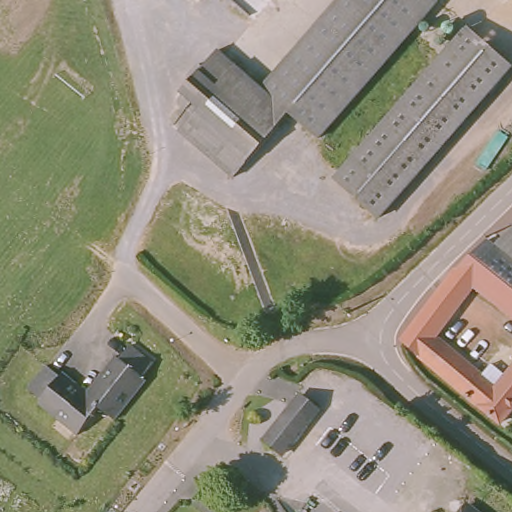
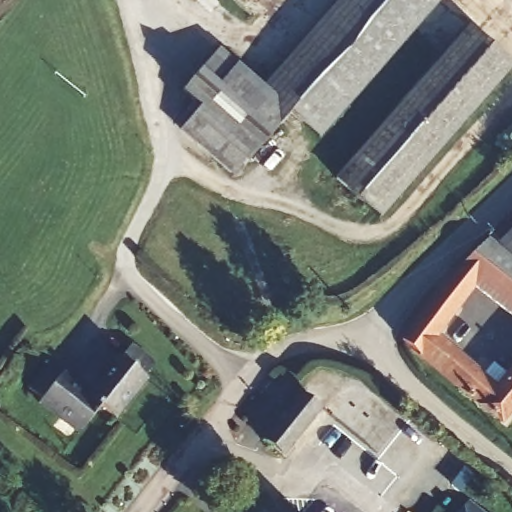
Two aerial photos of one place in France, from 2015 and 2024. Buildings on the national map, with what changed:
unchanged [(314,145),(285,121),(232,180),(176,131),(196,109),(182,96),(218,57),(262,94),(349,0),(427,0),(439,11),(314,145)]
unchanged [(376,223),(335,185),(473,38),(512,74),(512,80),(376,223)]
unchanged [(506,243),(512,237),(512,250),(511,249),(506,243)]
unchanged [(498,429),(403,348),(442,297),(456,278),(490,243),(495,247),(498,250),(512,262),(512,325),(475,292),(426,349),(463,382),(468,376),(477,383),(487,372),(502,385),(512,374),(512,412),(511,414),(498,429)]
unchanged [(512,250),(512,262),(498,250),(506,243),(511,249),(512,250)]
unchanged [(121,362),(130,351),(153,370),(143,382),(145,383),(113,421),(100,411),(80,435),(38,403),(40,401),(29,393),(49,370),(59,378),(60,376),(87,398),(119,360),(121,362)]
unchanged [(255,440),(288,402),(294,394),(321,418),(315,425),(283,463),(255,440)]

